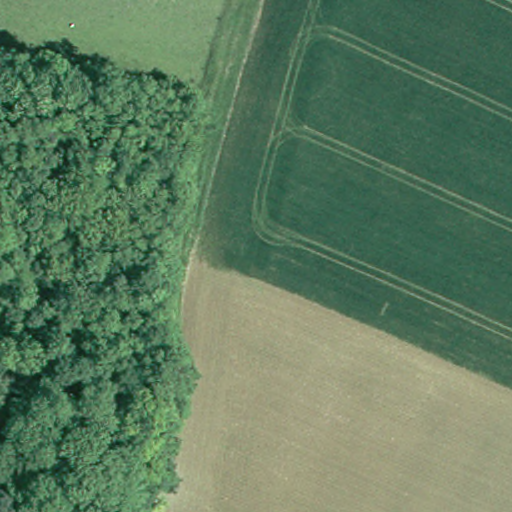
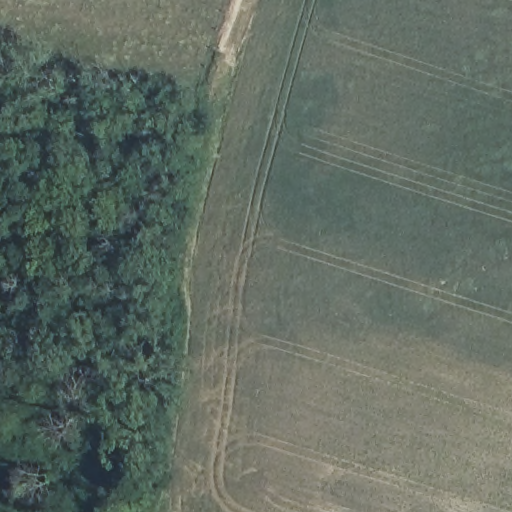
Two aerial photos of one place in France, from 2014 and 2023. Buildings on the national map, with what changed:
[]

